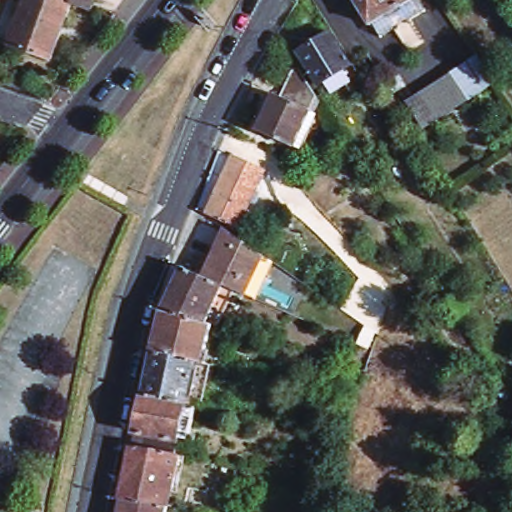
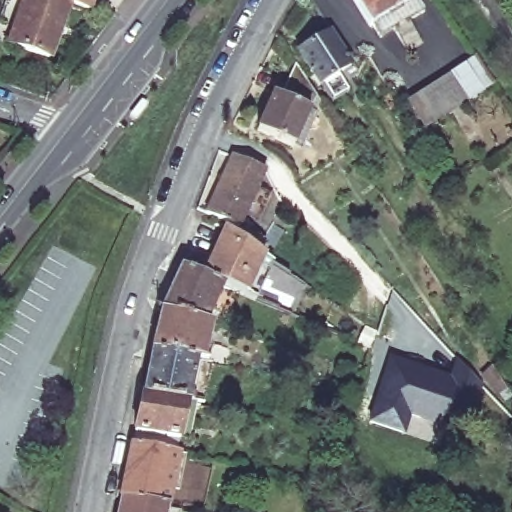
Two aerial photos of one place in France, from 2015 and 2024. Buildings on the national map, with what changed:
unchanged [(66,4),(46,59),(8,45),(24,2),(18,0),(55,0),(66,4)]
unchanged [(80,6),(80,10),(66,4),(55,0),(83,0),(80,6)]
unchanged [(412,5),(400,13),(412,35),(396,44),(383,21),(371,29),(363,15),(360,14),(353,0),(410,0),(412,5)]
unchanged [(347,70),(316,89),(297,57),(329,37),(347,70)]
unchanged [(400,110),(467,63),(486,91),(417,138),(400,110)]
unchanged [(315,101),(292,152),(255,135),(272,99),(278,101),(293,69),(315,101)]
unchanged [(234,154),(266,169),(236,234),(204,218),(234,154)]
unchanged [(254,302),(244,299),(220,289),(202,281),(224,236),(248,252),(261,261),(270,267),(255,300),(254,302)]
unchanged [(202,281),(220,289),(204,328),(160,315),(179,271),(202,281)]
unchanged [(204,328),(209,330),(198,369),(192,368),(149,360),(160,315),(204,328)]
new [(388,355),(449,375),(455,355),(478,379),(468,410),(449,404),(447,411),(423,403),(419,416),(406,412),(401,430),(367,420),(388,355)]
unchanged [(192,368),(184,410),(140,402),(149,360),(192,368)]
unchanged [(175,459),(130,450),(140,402),(184,410),(187,411),(177,460),(175,459)]
unchanged [(130,450),(175,459),(163,512),(161,512),(119,503),(130,450)]
unchanged [(161,512),(117,512),(119,503),(161,512)]

